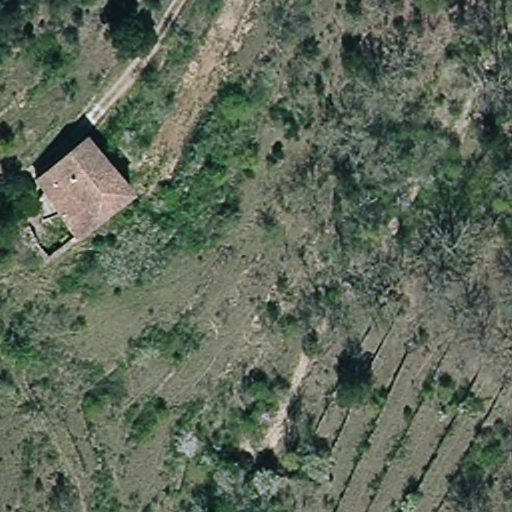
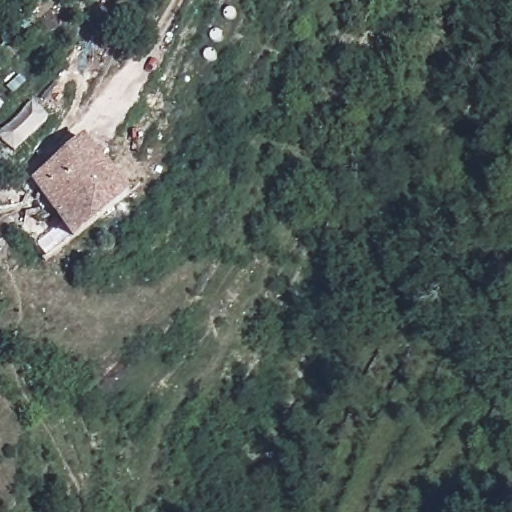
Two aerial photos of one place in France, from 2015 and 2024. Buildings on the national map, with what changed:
unchanged [(116,200),(75,231),(42,172),(78,149),(116,200)]

